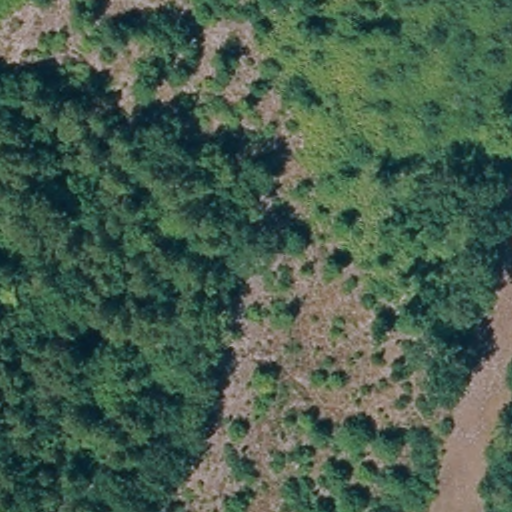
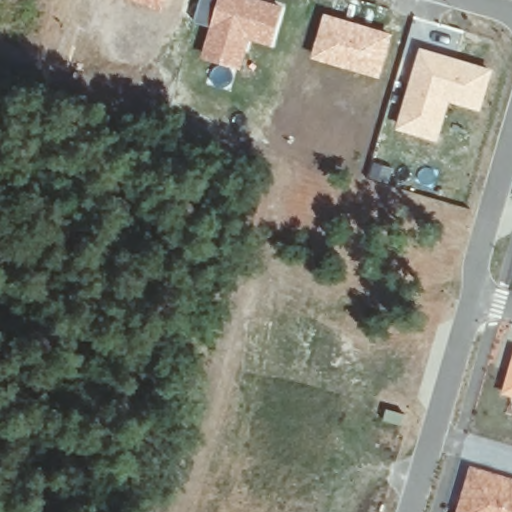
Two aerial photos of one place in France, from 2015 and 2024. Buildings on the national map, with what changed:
new [(136,0),(168,0),(164,11),(136,0)]
new [(202,57),(211,25),(195,20),(201,0),(267,0),(284,5),(272,45),(250,40),(241,69),(202,57)]
new [(381,79),(311,57),(325,13),(395,34),(381,79)]
new [(438,141),(396,129),(421,46),(463,59),(494,69),(482,110),(450,101),(438,141)]
new [(512,363),(512,398),(503,396),(512,363)]
new [(512,479),(512,512),(458,512),(471,467),(512,479)]

